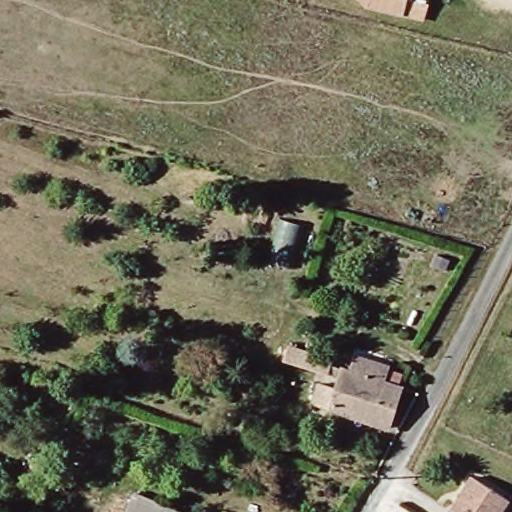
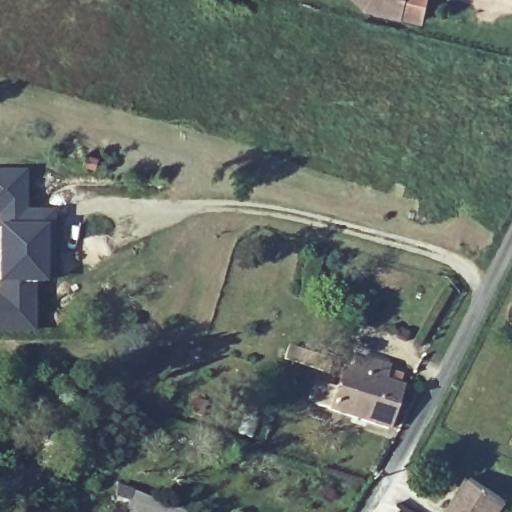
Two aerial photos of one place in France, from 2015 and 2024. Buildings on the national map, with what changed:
unchanged [(372,8),(363,0),(412,0),(409,15),(372,8)]
new [(54,210),(54,271),(46,270),(45,286),(34,285),(35,333),(0,334),(0,172),(25,171),(26,212),(54,210)]
unchanged [(326,371),(289,359),(292,349),(329,361),(326,371)]
unchanged [(385,386),(387,387),(376,426),(312,407),(317,389),(333,394),(339,373),(376,384),(378,374),(387,377),(385,386)]
unchanged [(503,512),(452,512),(465,492),(476,477),(511,500),(505,509),(503,512)]
unchanged [(155,509),(157,503),(172,508),(170,512),(125,512),(129,501),(155,509)]

